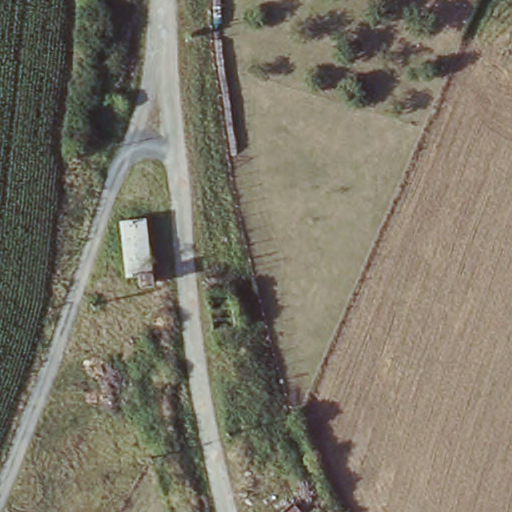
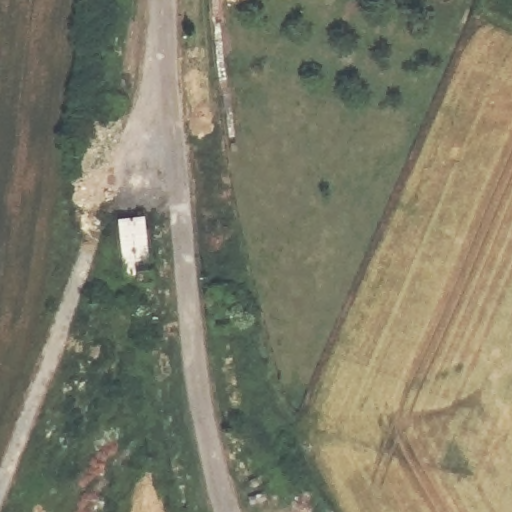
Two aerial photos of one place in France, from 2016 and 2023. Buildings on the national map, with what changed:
unchanged [(99,92),(120,98),(114,115),(94,107),(99,92)]
unchanged [(119,218),(145,219),(148,281),(136,282),(134,271),(121,271),(119,218)]
unchanged [(203,291),(224,290),(229,325),(209,329),(203,291)]

